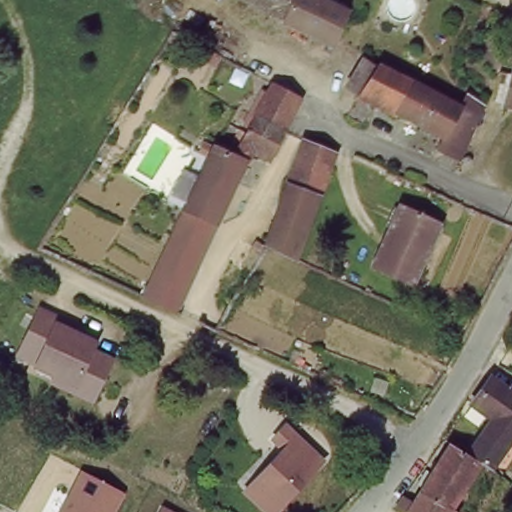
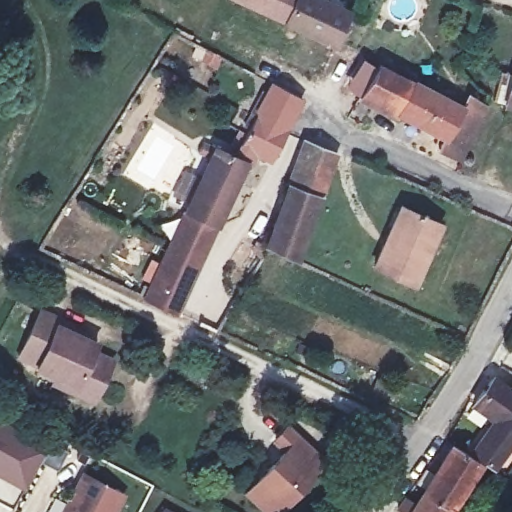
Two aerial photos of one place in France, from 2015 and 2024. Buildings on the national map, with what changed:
unchanged [(292,0),(281,20),(240,0),(292,0)]
unchanged [(326,0),(353,12),(339,41),(337,46),(281,20),(292,0),(326,0)]
unchanged [(443,145),(447,139),(399,116),(397,121),(361,103),(379,66),(463,105),(474,94),(493,109),(484,127),(471,157),(443,145)]
unchanged [(274,92),(265,87),(268,82),(274,72),(309,89),(277,163),(254,153),(243,148),(274,92)]
unchanged [(507,105),(512,87),(512,107),(507,105)]
unchanged [(309,139),(336,149),(298,255),(268,242),(309,139)]
unchanged [(254,153),(221,227),(188,213),(213,152),(236,162),(243,148),(254,153)]
unchanged [(440,220),(414,281),(376,263),(403,204),(440,220)]
unchanged [(183,316),(153,303),(188,213),(221,227),(183,316)]
unchanged [(59,385),(63,377),(41,367),(43,365),(24,356),(48,311),(93,333),(90,340),(103,346),(99,353),(119,362),(104,390),(97,403),(59,385)]
unchanged [(467,458),(496,425),(471,407),(492,379),(508,391),(512,386),(512,435),(483,472),(478,468),(467,458)]
new [(35,448),(46,454),(24,491),(0,477),(0,417),(39,440),(35,448)]
unchanged [(283,452),(269,439),(288,422),(327,463),(281,512),(263,512),(243,493),(283,452)]
unchanged [(450,512),(404,512),(397,506),(406,495),(414,501),(449,451),(442,445),(446,441),(467,458),(478,468),(450,512)]
unchanged [(128,495),(119,512),(64,512),(83,472),(128,495)]
unchanged [(174,512),(162,512),(164,507),(174,512)]

